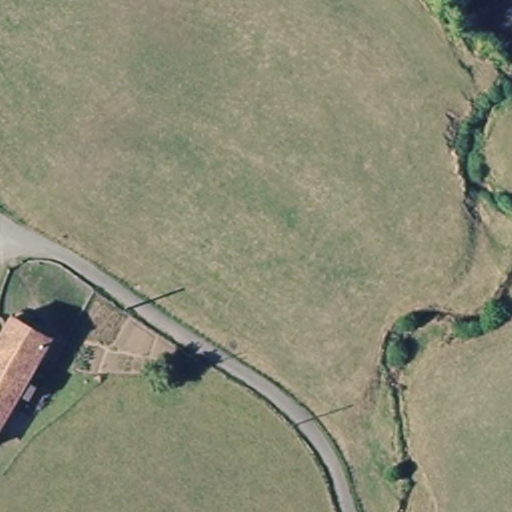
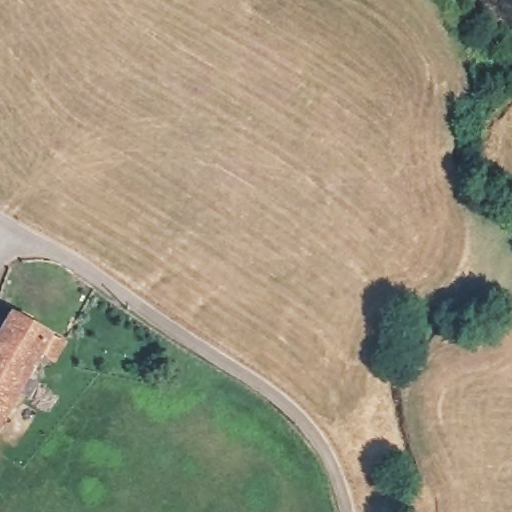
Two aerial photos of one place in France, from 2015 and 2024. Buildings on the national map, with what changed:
unchanged [(32,321),(55,336),(66,343),(54,361),(43,353),(40,358),(46,362),(40,370),(35,366),(0,423),(0,341),(21,309),(34,317),(32,321)]

